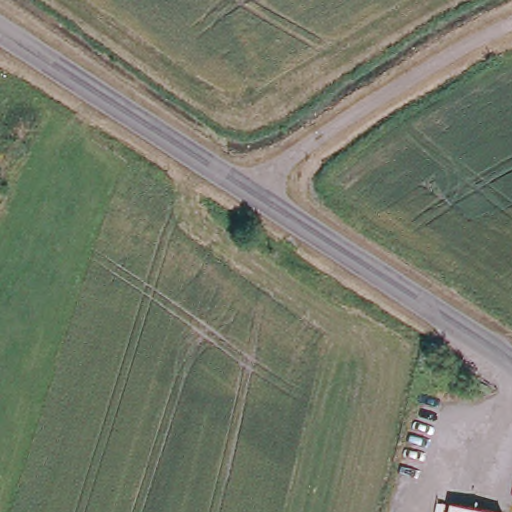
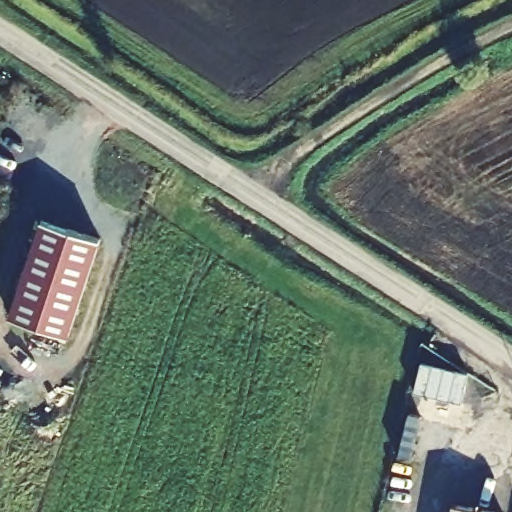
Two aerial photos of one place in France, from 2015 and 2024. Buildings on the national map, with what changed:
new [(42,219),(101,238),(69,336),(10,317),(42,219)]
unchanged [(473,512),(456,512),(457,508),(473,512)]

